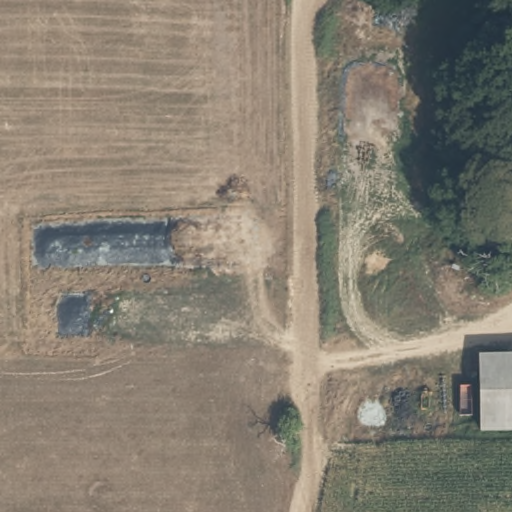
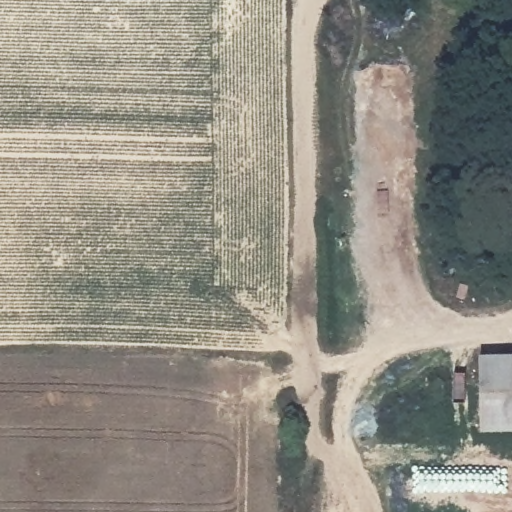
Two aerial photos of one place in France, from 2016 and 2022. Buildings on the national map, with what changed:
unchanged [(512,434),(482,436),(478,361),(512,359),(512,434)]

